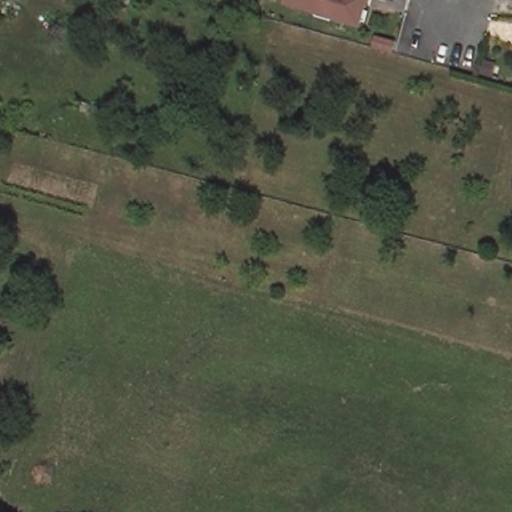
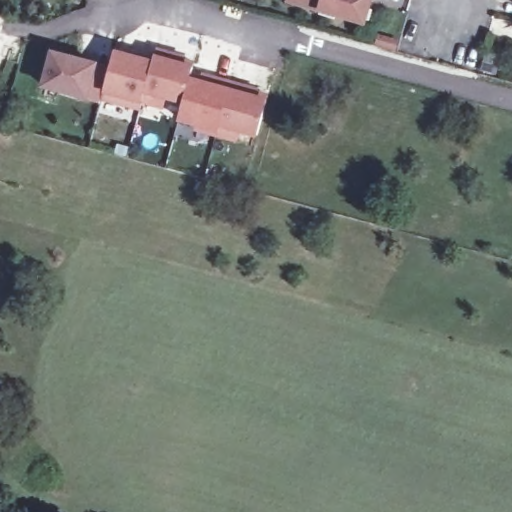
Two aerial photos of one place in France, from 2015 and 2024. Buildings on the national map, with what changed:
unchanged [(320,11),(290,2),(290,0),(371,0),(369,7),(364,24),(320,11)]
new [(50,50),(98,63),(88,99),(40,87),(50,50)]
new [(162,109),(141,103),(140,111),(101,101),(103,93),(113,50),(152,60),(153,56),(192,66),(182,105),(165,101),(162,109)]
new [(227,88),(218,128),(216,137),(195,132),(197,127),(177,122),(182,105),(190,77),(227,88)]
new [(236,142),(216,137),(218,128),(227,88),(266,98),(255,139),(239,134),(236,142)]

